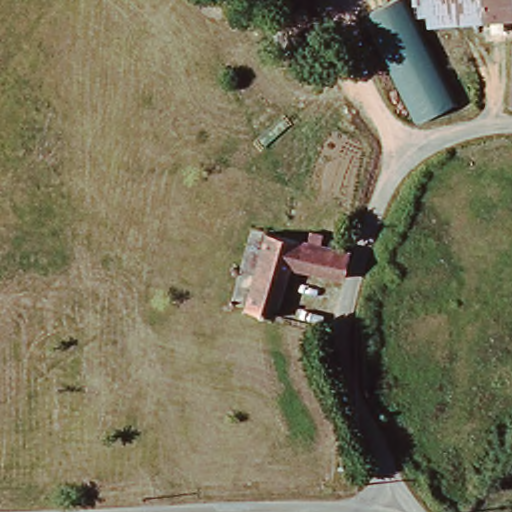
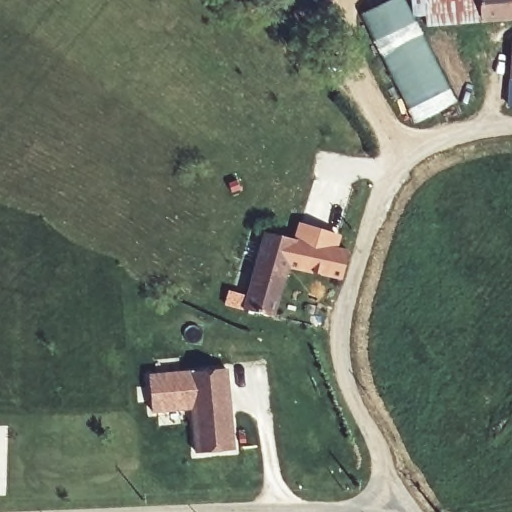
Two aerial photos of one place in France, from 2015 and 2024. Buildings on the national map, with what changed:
unchanged [(360,18),(397,0),(405,0),(457,105),(413,125),(360,18)]
unchanged [(427,0),(512,0),(512,20),(430,30),(427,0)]
unchanged [(510,43),(512,43),(512,112),(510,112),(510,43)]
unchanged [(265,234),(347,254),(337,284),(287,272),(271,323),(240,314),(265,234)]
new [(190,410),(152,414),(148,375),(227,368),(234,449),(195,454),(190,410)]
new [(6,426),(6,496),(0,496),(0,426),(6,426)]

